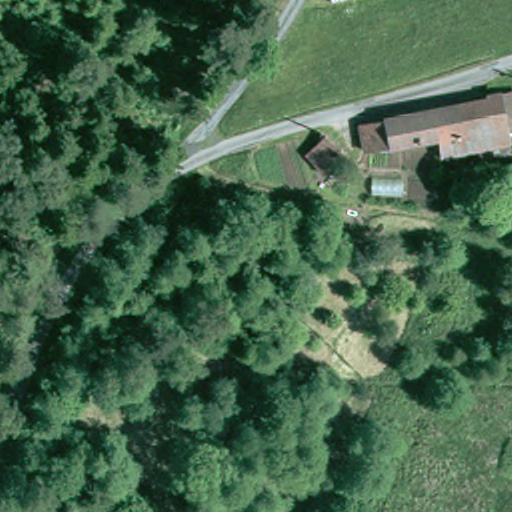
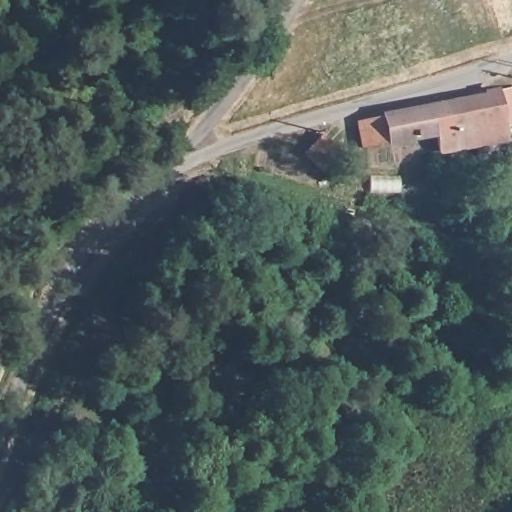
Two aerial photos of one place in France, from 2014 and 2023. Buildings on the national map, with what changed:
unchanged [(509,117),(481,122),(464,125),(458,101),(502,91),(509,117)]
unchanged [(361,121),(389,115),(458,101),(464,125),(481,122),(486,145),(450,151),(445,130),(397,141),(368,147),(361,121)]

